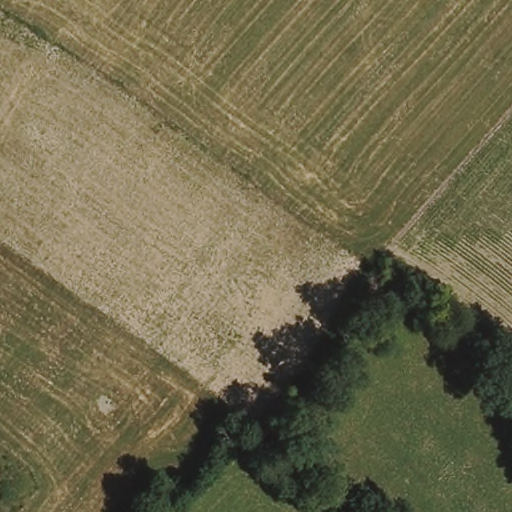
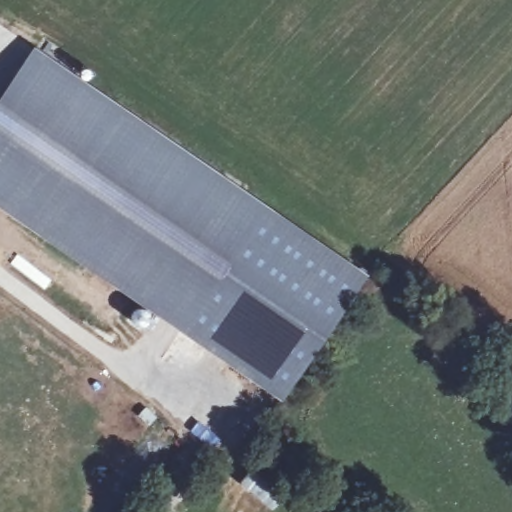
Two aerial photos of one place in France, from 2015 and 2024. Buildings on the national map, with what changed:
new [(35,47),(367,273),(281,399),(0,207),(0,98),(35,47)]

